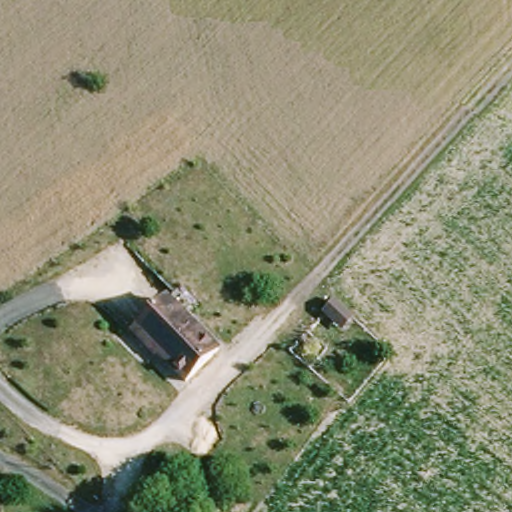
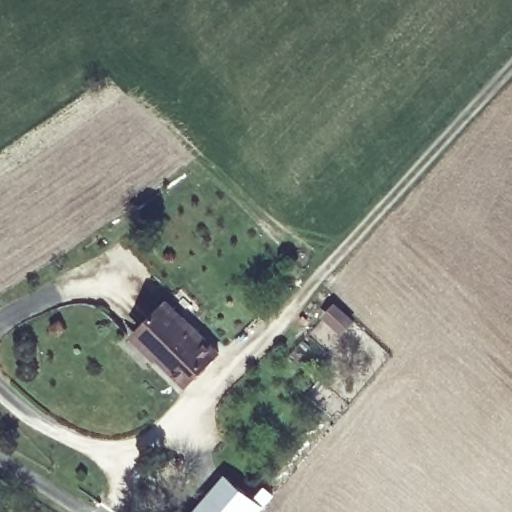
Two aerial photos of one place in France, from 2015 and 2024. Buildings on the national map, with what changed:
unchanged [(134,337),(165,305),(215,354),(184,386),(134,337)]
new [(254,512),(192,512),(220,478),(252,503),(257,508),(254,512)]

